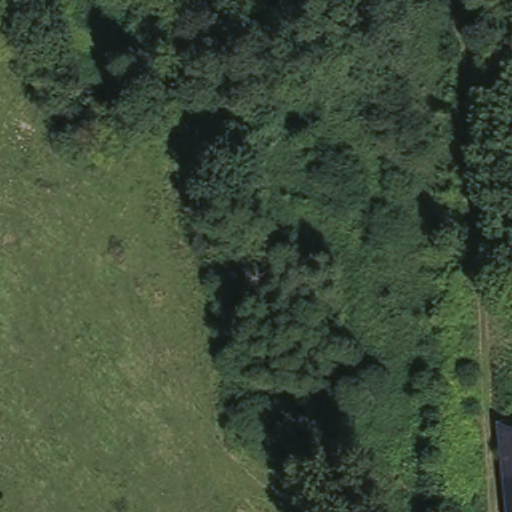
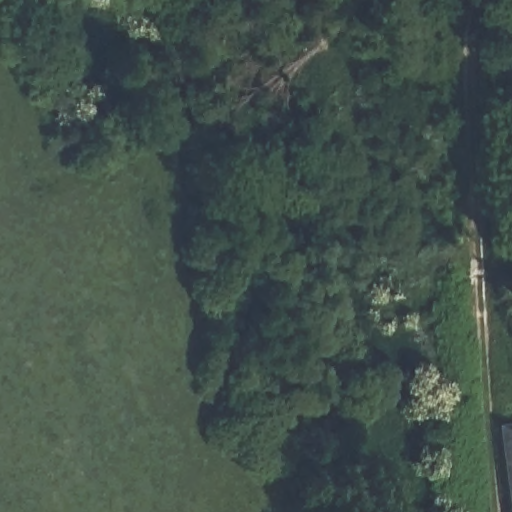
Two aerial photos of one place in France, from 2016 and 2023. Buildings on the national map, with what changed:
unchanged [(512,418),(512,512),(502,512),(491,420),(512,418)]

